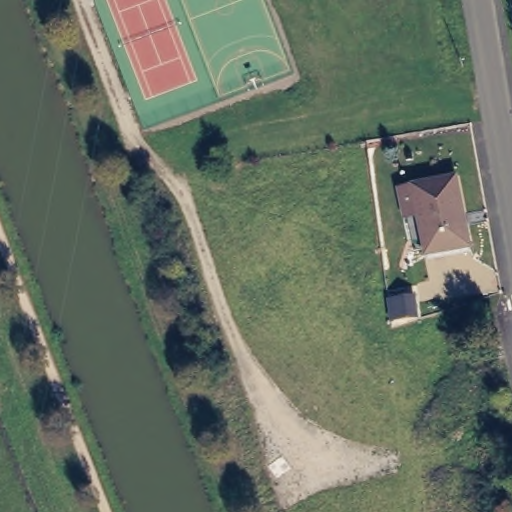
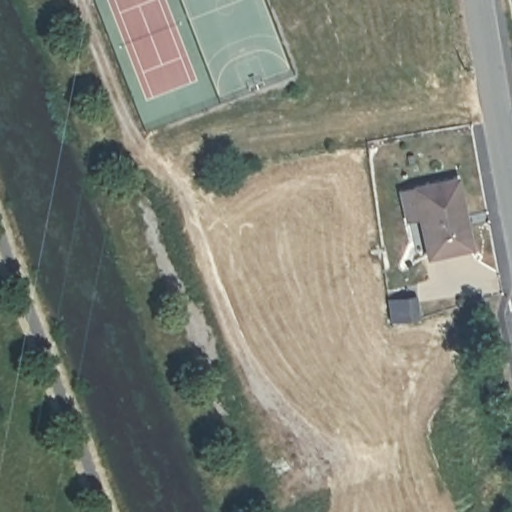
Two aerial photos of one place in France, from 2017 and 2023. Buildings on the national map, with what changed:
unchanged [(475,249),(431,258),(424,219),(408,221),(404,192),(422,189),(461,181),(475,249)]

